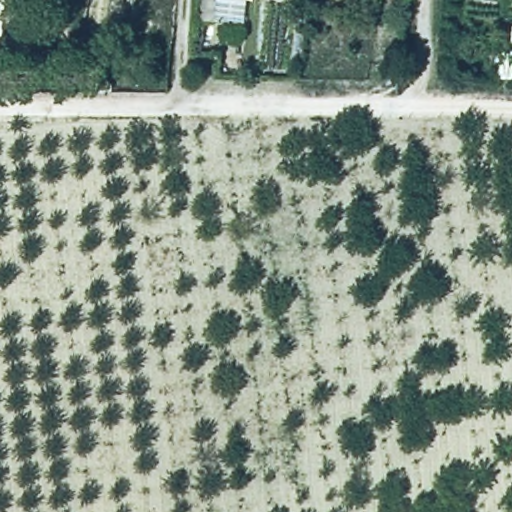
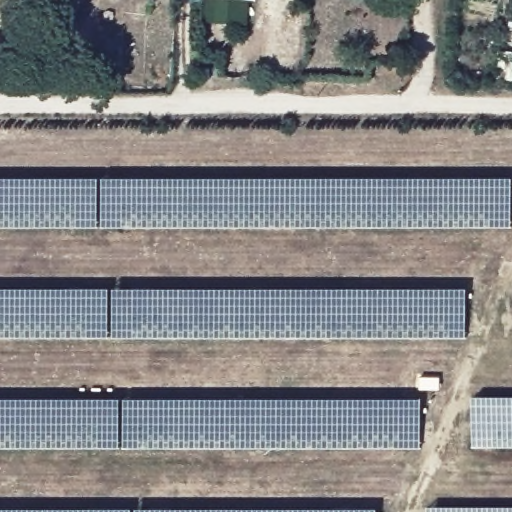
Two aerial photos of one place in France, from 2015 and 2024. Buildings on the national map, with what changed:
unchanged [(231,2),(229,25),(197,22),(198,0),(252,0),(252,5),(231,2)]
new [(508,226),(0,227),(0,178),(507,179),(508,226)]
new [(463,336),(0,336),(0,287),(463,288),(463,336)]
new [(473,396),(512,397),(512,447),(472,447),(473,396)]
new [(418,446),(0,447),(0,398),(418,398),(418,446)]
new [(127,507),(373,507),(373,512),(0,512),(0,508),(127,507)]
new [(512,512),(428,512),(428,507),(512,507),(512,512)]

